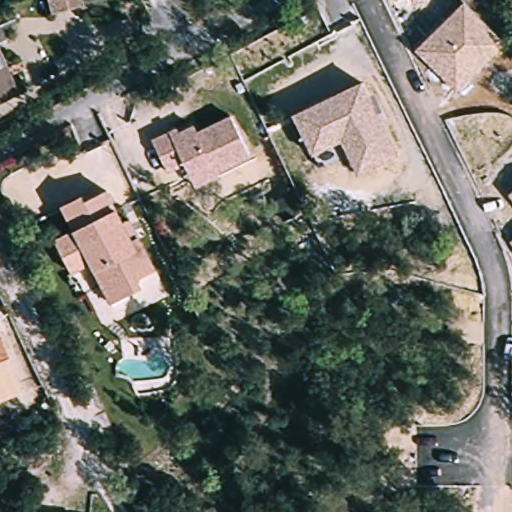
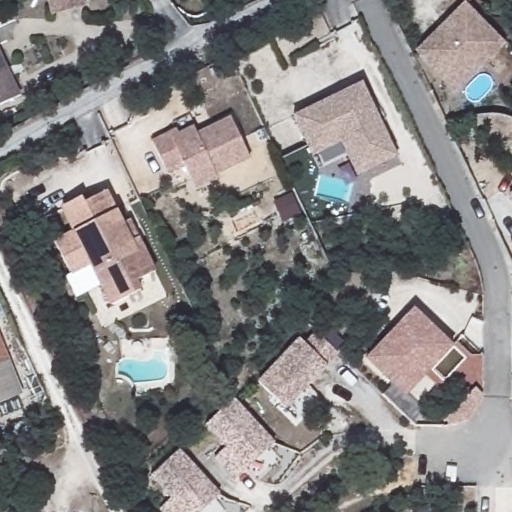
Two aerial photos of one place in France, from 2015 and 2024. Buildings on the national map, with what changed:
unchanged [(82,5),(53,12),(50,0),(81,0),(82,5)]
unchanged [(472,2),(470,0),(474,0),(472,2)]
unchanged [(506,44),(458,91),(415,48),(466,1),(506,44)]
unchanged [(20,95),(0,104),(0,54),(20,95)]
unchanged [(400,154),(359,178),(341,142),(315,157),(292,116),(360,81),(400,154)]
unchanged [(198,187),(192,176),(186,164),(170,172),(154,140),(172,131),(175,136),(196,125),(199,132),(234,116),(253,156),(219,173),(221,176),(198,187)]
unchanged [(84,199),(107,188),(123,221),(132,240),(138,237),(143,246),(155,271),(137,280),(141,289),(110,304),(100,284),(89,261),(69,271),(53,239),(73,229),(61,203),(81,194),(84,199)]
unchanged [(512,191),(512,198),(509,194),(512,191)]
unchanged [(512,240),(512,242),(511,241),(512,240)]
new [(398,387),(367,358),(414,308),(453,345),(431,370),(406,395),(398,387)]
new [(299,339),(304,344),(315,332),(337,352),(306,386),(285,408),(258,382),(299,339)]
unchanged [(9,360),(0,363),(0,338),(9,360)]
new [(235,396),(276,442),(237,478),(217,455),(227,445),(206,423),(235,396)]
new [(222,492),(201,512),(167,512),(162,506),(173,495),(153,473),(181,447),(222,492)]
unchanged [(69,512),(23,512),(24,505),(69,507),(69,512)]

